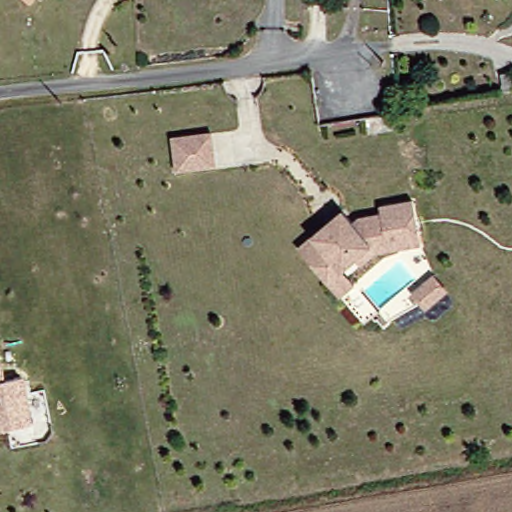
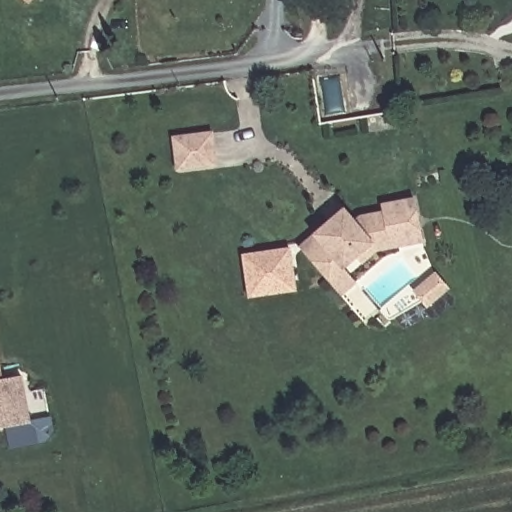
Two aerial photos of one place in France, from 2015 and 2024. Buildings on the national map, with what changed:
unchanged [(24,4),(18,0),(27,0),(24,4)]
unchanged [(210,129),(217,161),(178,169),(172,136),(210,129)]
unchanged [(333,278),(303,241),(348,205),(359,218),(365,213),(387,210),(386,203),(419,198),(424,229),(426,242),(381,249),(365,262),(360,256),(347,267),(359,282),(345,293),(333,278)]
new [(290,248),(297,291),(248,298),(242,255),(290,248)]
unchanged [(446,289),(425,306),(413,291),(434,274),(446,289)]
unchanged [(5,378),(25,375),(27,388),(0,392),(0,337),(5,378)]
unchanged [(27,388),(32,422),(0,427),(0,392),(27,388)]

